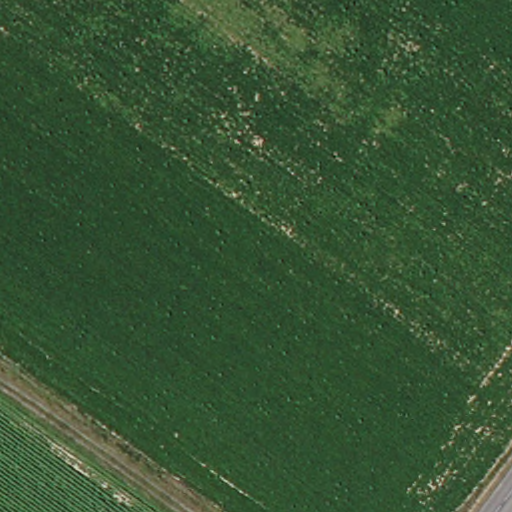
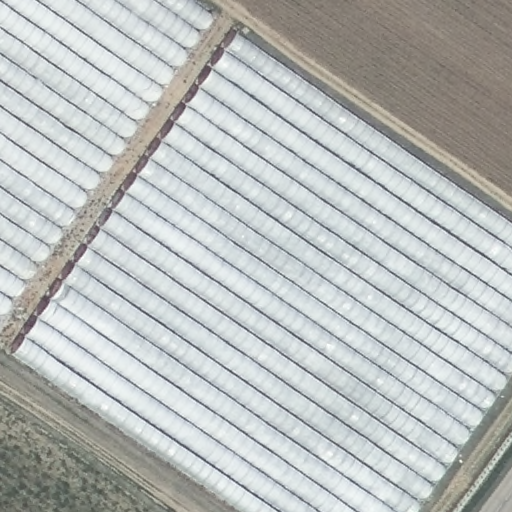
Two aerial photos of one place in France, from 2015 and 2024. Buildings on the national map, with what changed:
new [(190,0),(215,17),(0,315),(0,0),(190,0)]
new [(512,220),(512,372),(414,512),(239,512),(10,354),(236,32),(512,220)]

